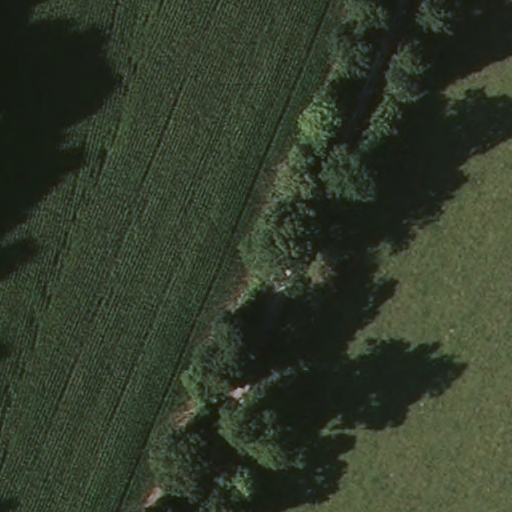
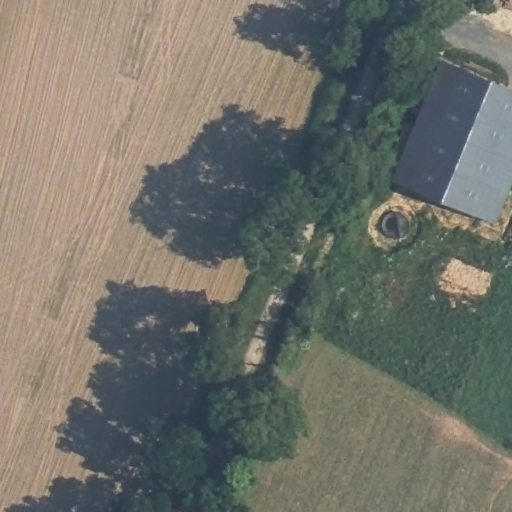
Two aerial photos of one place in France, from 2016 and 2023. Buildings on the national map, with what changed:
new [(512,194),(502,219),(398,177),(445,56),(512,80),(512,194)]

